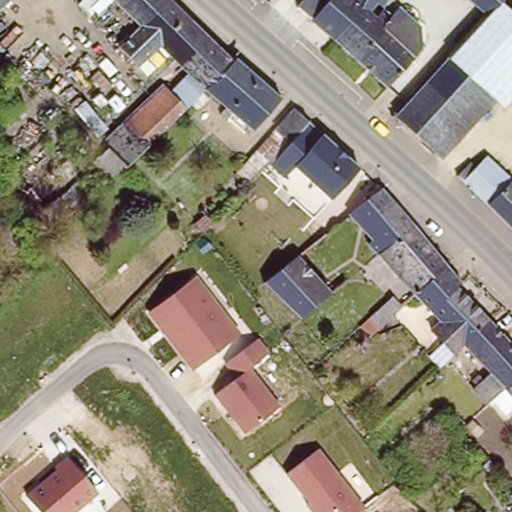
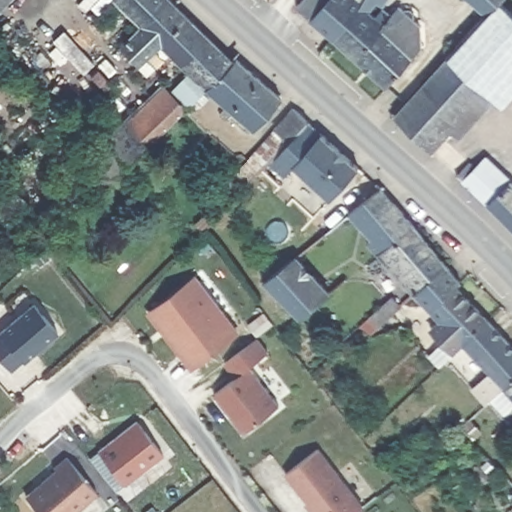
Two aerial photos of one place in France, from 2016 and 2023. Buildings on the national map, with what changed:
unchanged [(0,0),(9,0),(0,8),(0,0)]
unchanged [(89,165),(108,148),(102,141),(124,121),(162,85),(170,93),(189,74),(167,53),(146,75),(119,48),(140,25),(114,0),(170,0),(232,61),(205,89),(202,93),(208,99),(197,109),(190,104),(126,166),(122,170),(108,184),(89,165)]
unchanged [(304,0),(366,0),(362,5),(334,39),(297,7),(304,0)]
unchanged [(376,1),(370,11),(362,5),(366,0),(387,0),(384,6),(376,1)]
unchanged [(468,0),(501,0),(500,2),(486,16),(468,0)]
unchanged [(486,92),(449,59),(447,58),(486,16),(500,2),(512,13),(512,95),(502,106),(486,92)]
unchanged [(370,11),(376,17),(384,9),(392,15),(399,7),(421,26),(422,48),(387,87),(334,39),(362,5),(370,11)]
unchanged [(252,130),(249,127),(245,133),(227,118),(226,119),(220,114),(225,107),(205,89),(232,61),(235,59),(281,99),(252,130)]
unchanged [(397,116),(449,59),(486,92),(433,150),(397,116)]
unchanged [(275,155),(245,185),(235,175),(275,130),(274,129),(294,109),(307,121),(275,155)]
unchanged [(317,171),(305,159),(293,173),(275,155),(307,121),(337,150),(317,171)]
unchanged [(305,159),(317,171),(337,150),(358,169),(329,199),(293,173),(305,159)]
unchanged [(462,182),(455,175),(469,162),(475,168),(485,158),(510,181),(487,204),(462,182)]
unchanged [(398,278),(377,254),(377,255),(367,244),(372,240),(349,214),(370,197),(363,189),(374,180),(380,188),(445,266),(413,294),(398,278)]
unchanged [(487,204),(510,181),(512,183),(512,229),(487,204)]
unchanged [(57,225),(44,211),(57,198),(70,212),(57,225)]
unchanged [(30,238),(19,249),(12,256),(0,244),(0,218),(5,213),(30,238)]
unchanged [(202,232),(194,223),(203,214),(211,224),(202,232)]
unchanged [(299,324),(263,288),(295,262),(330,299),(299,324)]
unchanged [(462,345),(439,368),(428,357),(442,343),(430,330),(440,323),(422,302),(413,294),(445,266),(460,283),(460,284),(455,288),(487,320),(462,345)]
unchanged [(146,314),(194,278),(240,334),(190,370),(146,314)]
unchanged [(359,326),(370,317),(392,296),(400,305),(402,306),(379,328),(370,335),(359,326)]
new [(57,332),(24,362),(22,361),(10,371),(0,359),(0,334),(34,304),(57,332)]
unchanged [(504,388),(486,404),(472,389),(475,387),(471,382),(477,375),(482,380),(489,374),(479,363),(462,345),(487,320),(512,348),(512,381),(504,388)]
unchanged [(251,369),(236,379),(225,366),(259,338),(270,352),(251,369)]
unchanged [(278,407),(244,435),(214,397),(251,369),(278,407)]
unchanged [(504,388),(512,381),(512,397),(504,388)]
new [(137,423),(162,456),(125,485),(97,451),(137,423)]
unchanged [(319,449),(364,509),(359,512),(312,512),(285,476),(319,449)]
unchanged [(98,492),(76,512),(38,512),(24,496),(68,456),(98,492)]

